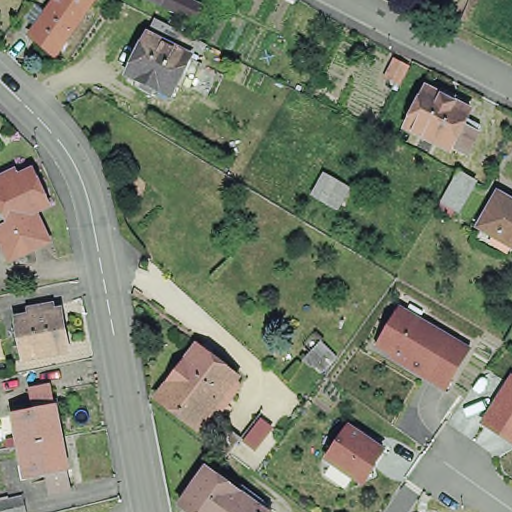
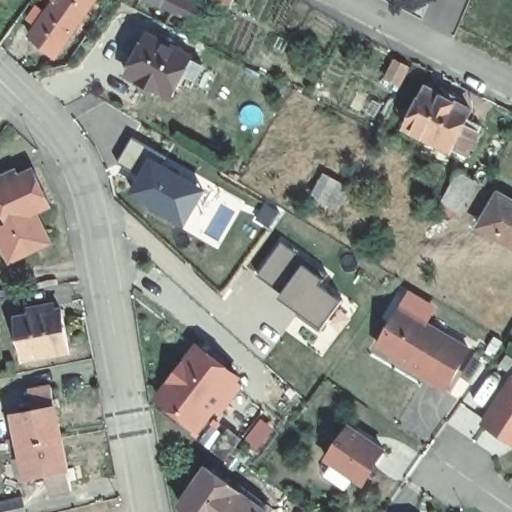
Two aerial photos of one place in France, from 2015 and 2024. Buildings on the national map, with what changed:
unchanged [(56,56),(30,36),(37,26),(27,19),(35,6),(46,14),(56,0),(94,0),(56,56)]
unchanged [(177,11),(162,4),(154,0),(190,0),(190,1),(207,9),(200,22),(177,11)]
unchanged [(211,0),(234,0),(230,10),(211,0)]
unchanged [(183,90),(171,84),(161,105),(117,81),(137,42),(146,27),(191,50),(182,67),(192,74),(183,90)]
unchanged [(397,81),(382,72),(392,55),(407,62),(397,81)]
unchanged [(444,153),(443,155),(397,132),(417,92),(462,115),(455,129),(470,136),(458,160),(444,153)]
new [(162,156),(157,166),(202,192),(180,231),(122,197),(132,176),(114,165),(129,137),(162,156)]
unchanged [(352,189),(340,211),(301,194),(315,169),(352,189)]
unchanged [(460,206),(445,197),(460,171),(476,180),(460,206)]
unchanged [(0,208),(0,181),(16,174),(19,180),(33,173),(50,210),(36,217),(50,246),(11,265),(0,242),(0,231),(9,227),(0,208)]
unchanged [(512,245),(480,226),(500,193),(512,200),(512,245)]
new [(300,260),(296,266),(318,281),(315,286),(336,301),(313,331),(272,298),(277,291),(257,277),(278,244),(300,260)]
unchanged [(34,310),(58,305),(60,310),(65,310),(73,351),(29,360),(22,318),(35,316),(34,310)]
unchanged [(398,308),(466,353),(441,391),(393,360),(395,357),(375,344),(398,308)]
unchanged [(213,406),(198,427),(158,397),(198,346),(237,376),(235,379),(242,385),(221,412),(213,406)]
unchanged [(512,373),(512,445),(477,423),(512,373)]
unchanged [(16,446),(10,414),(30,410),(27,391),(45,387),(55,438),(16,446)]
unchanged [(225,459),(210,448),(227,426),(242,437),(225,459)]
unchanged [(383,450),(374,462),(372,466),(367,466),(359,480),(352,476),(345,488),(325,473),(332,462),(327,457),(342,434),(348,426),(383,450)]
unchanged [(16,446),(55,438),(65,490),(45,494),(41,475),(22,478),(16,446)]
unchanged [(207,462),(269,509),(267,512),(198,512),(178,498),(207,462)]
unchanged [(24,497),(27,512),(0,512),(0,503),(24,497)]

